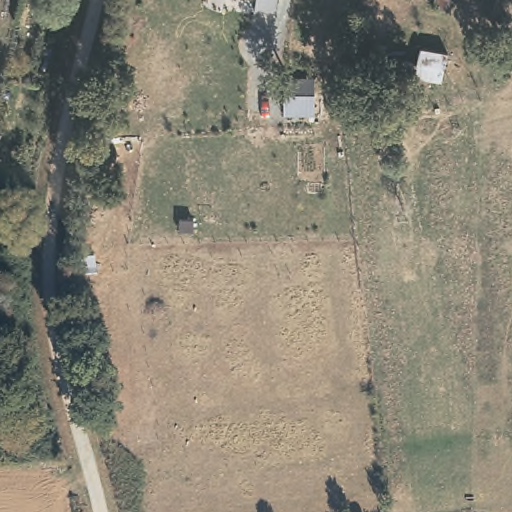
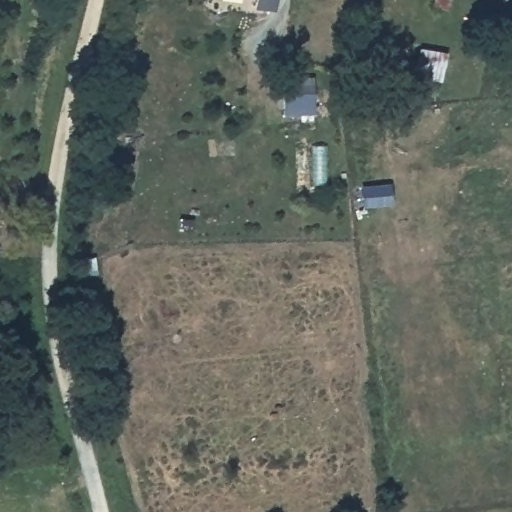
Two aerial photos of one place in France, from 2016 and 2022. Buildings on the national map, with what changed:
unchanged [(275,11),(254,8),(255,0),(276,0),(275,11)]

